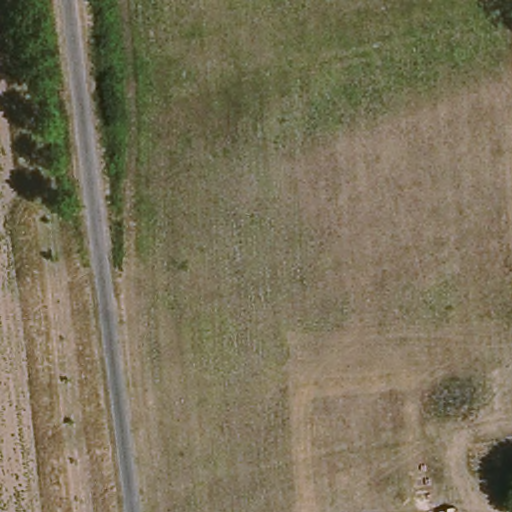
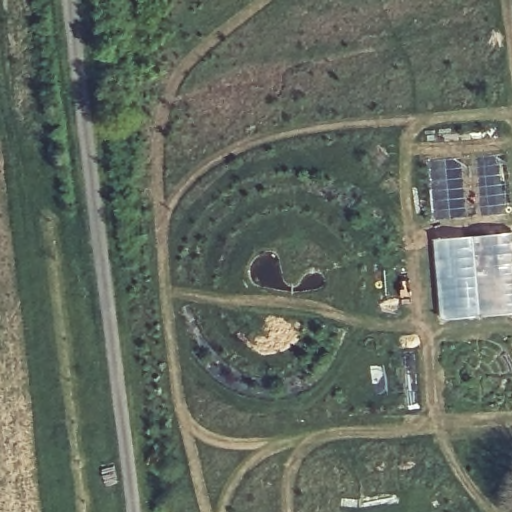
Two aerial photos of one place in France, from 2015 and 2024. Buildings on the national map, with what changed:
new [(461,157),(467,215),(432,219),(426,161),(461,157)]
new [(512,313),(441,320),(433,240),(512,232),(512,313)]

